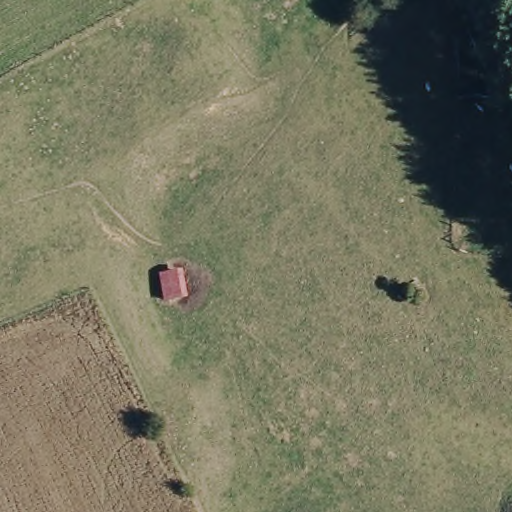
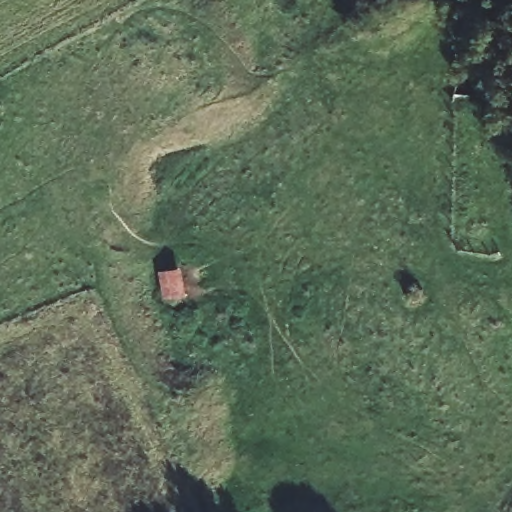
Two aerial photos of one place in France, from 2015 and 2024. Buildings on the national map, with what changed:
unchanged [(156,273),(185,264),(195,297),(168,313),(156,273)]

